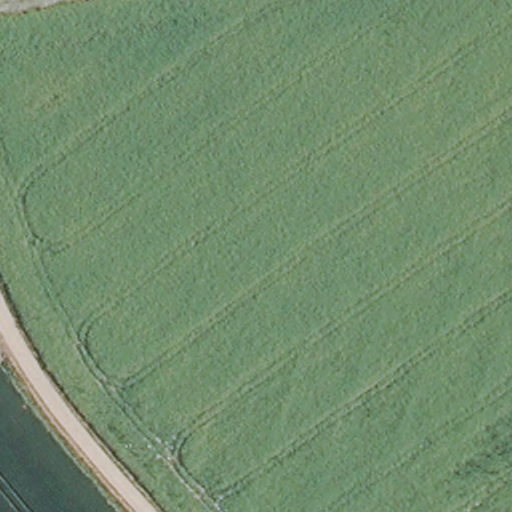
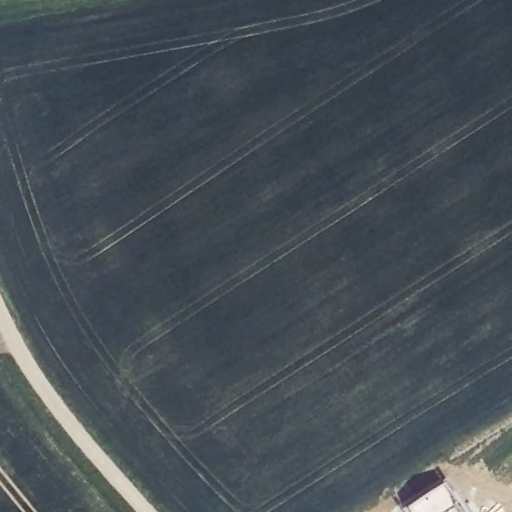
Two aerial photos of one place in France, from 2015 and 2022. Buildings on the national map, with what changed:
new [(447,484),(463,512),(411,512),(409,507),(447,484)]

